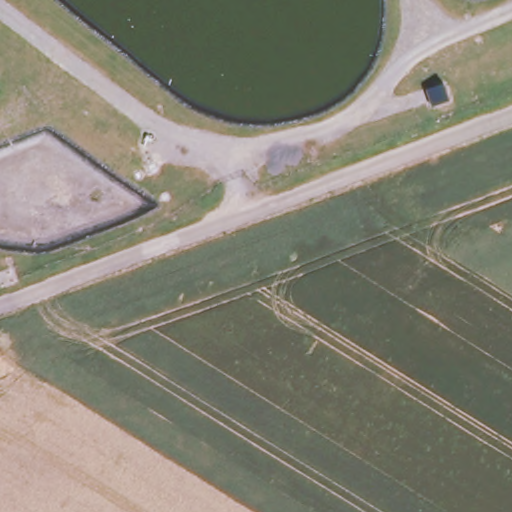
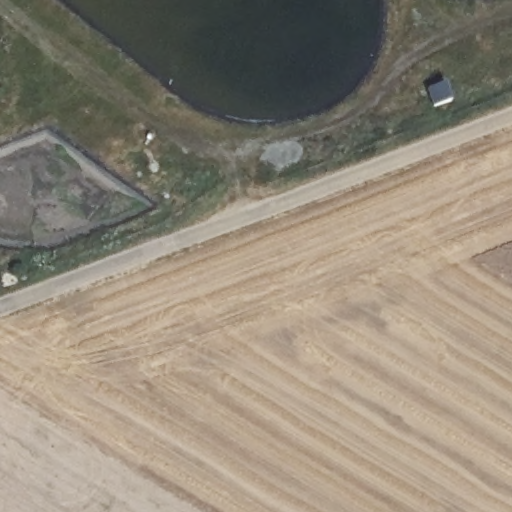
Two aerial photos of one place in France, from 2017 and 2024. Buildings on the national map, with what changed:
unchanged [(447,82),(452,99),(435,106),(428,88),(447,82)]

